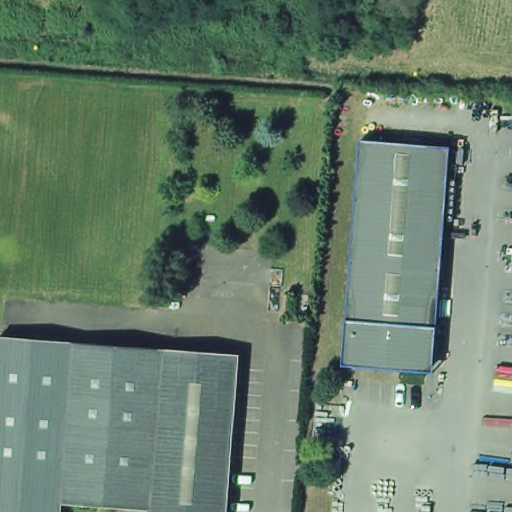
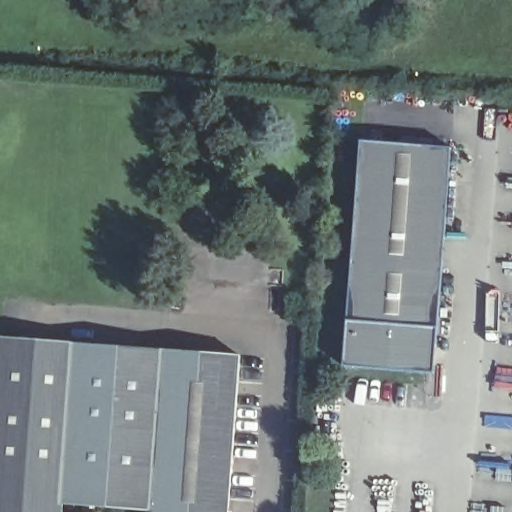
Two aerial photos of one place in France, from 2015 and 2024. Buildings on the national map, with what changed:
unchanged [(357,143),(448,150),(432,347),(422,347),(423,375),(339,367),(357,143)]
unchanged [(66,512),(0,512),(0,393),(5,340),(243,358),(232,512),(156,512),(66,506),(66,512)]

